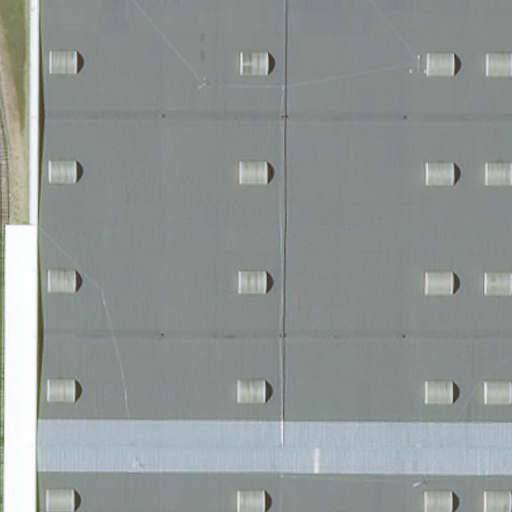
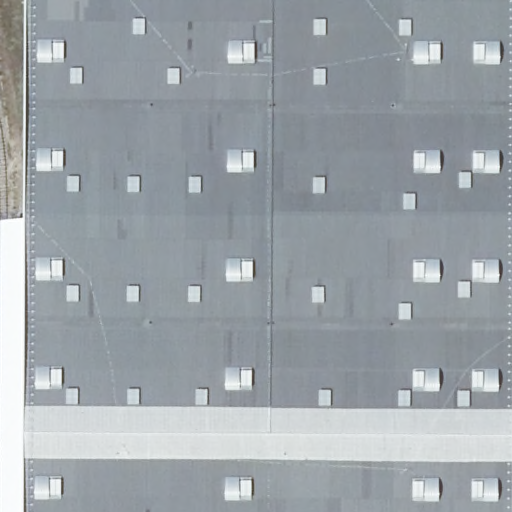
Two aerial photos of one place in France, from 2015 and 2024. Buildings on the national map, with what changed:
unchanged [(512,512),(27,512),(29,0),(512,0),(512,512)]

